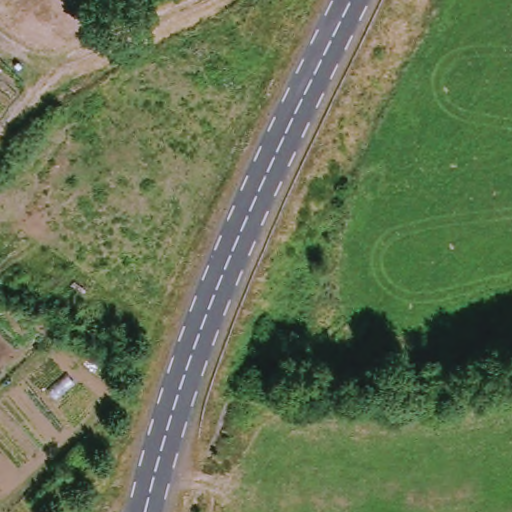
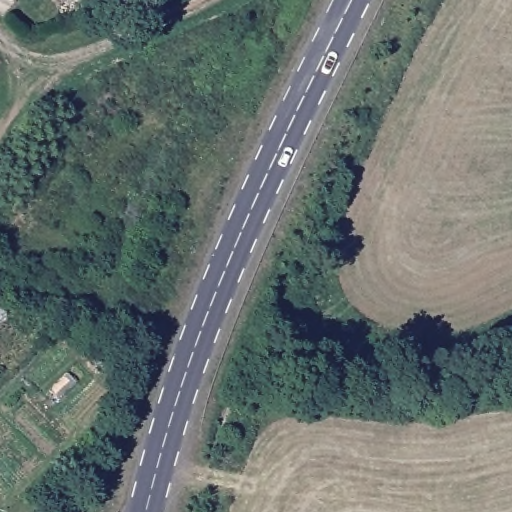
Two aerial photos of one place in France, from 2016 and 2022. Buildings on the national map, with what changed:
[]

